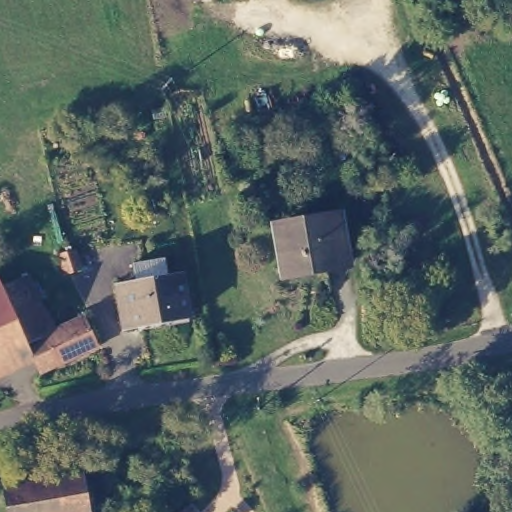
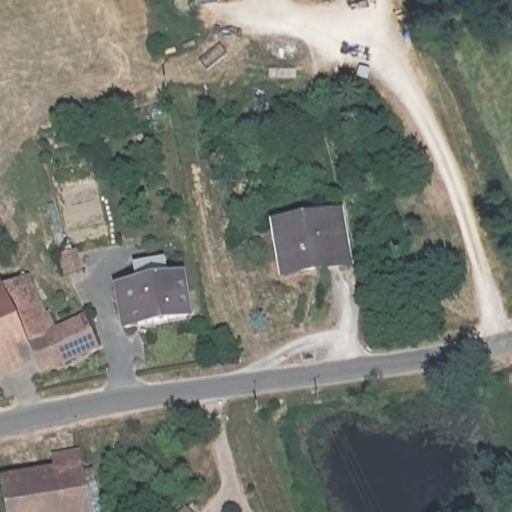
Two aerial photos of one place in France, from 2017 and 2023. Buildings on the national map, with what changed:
unchanged [(284,282),(272,233),(333,217),(346,264),(284,282)]
unchanged [(74,266),(61,271),(52,252),(66,247),(74,266)]
unchanged [(121,331),(114,290),(133,287),(129,269),(161,262),(166,282),(177,279),(185,319),(121,331)]
unchanged [(7,294),(11,298),(37,285),(63,337),(89,326),(104,359),(65,377),(50,344),(0,365),(0,296),(7,294)]
unchanged [(45,512),(14,512),(0,474),(75,448),(92,496),(45,512)]
unchanged [(195,512),(178,512),(186,504),(195,512)]

